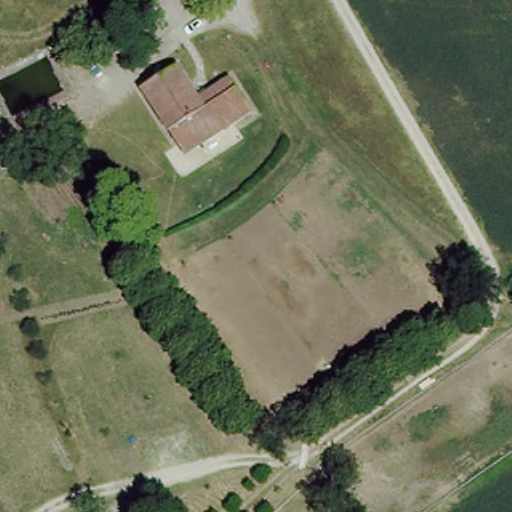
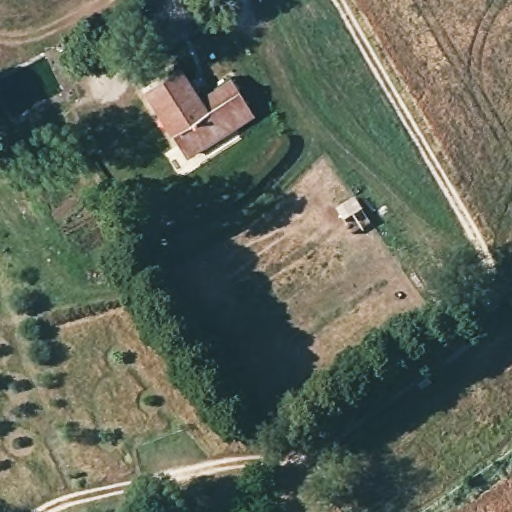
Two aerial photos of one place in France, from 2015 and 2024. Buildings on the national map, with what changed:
unchanged [(252,111),(183,155),(140,86),(176,63),(197,95),(231,75),(252,111)]

